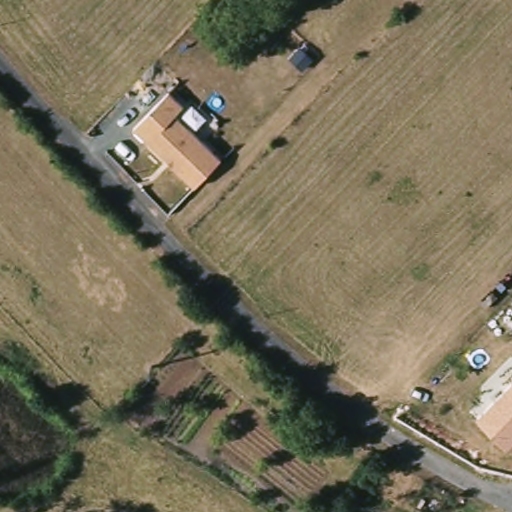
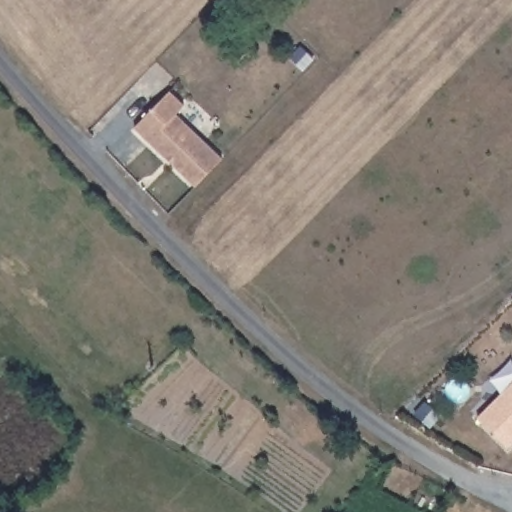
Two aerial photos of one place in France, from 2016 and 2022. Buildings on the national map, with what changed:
unchanged [(185,105),(175,117),(222,163),(195,193),(129,135),(170,89),(185,105)]
unchanged [(512,382),(512,444),(507,448),(476,417),(512,382)]

